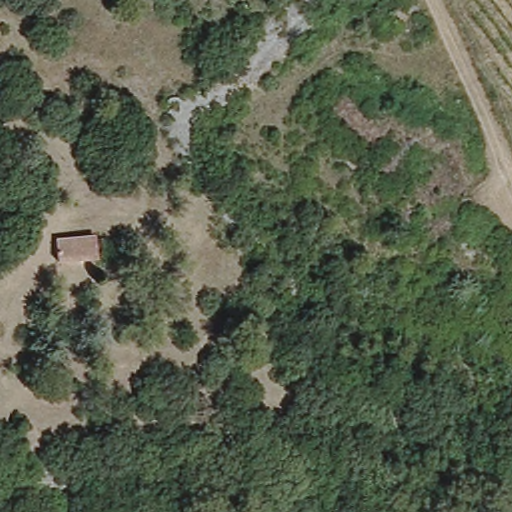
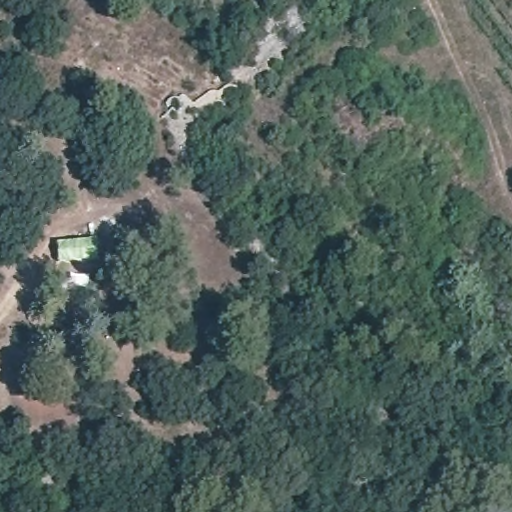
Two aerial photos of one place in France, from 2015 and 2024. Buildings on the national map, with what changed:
unchanged [(61,245),(100,242),(100,264),(62,267),(61,245)]

